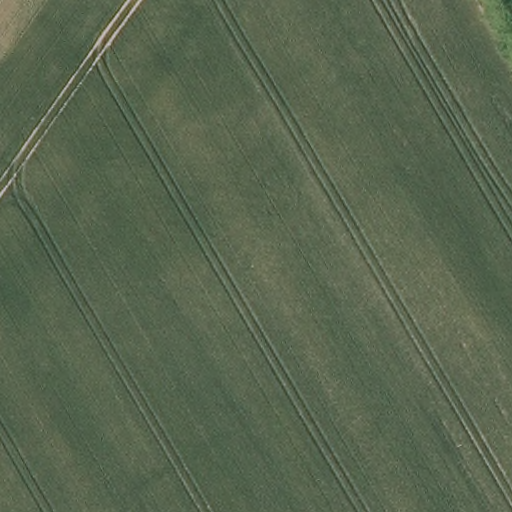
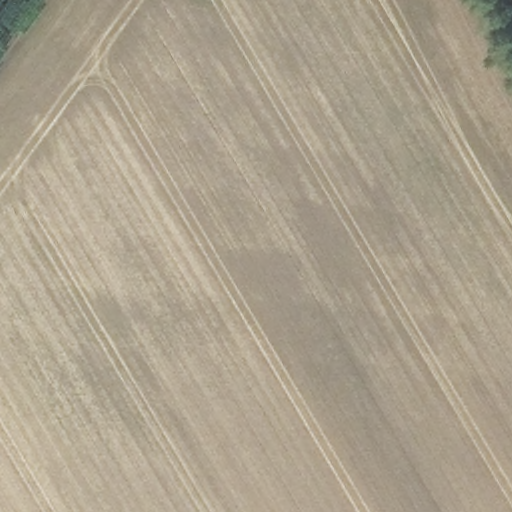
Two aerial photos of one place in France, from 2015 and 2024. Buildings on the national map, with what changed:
[]

